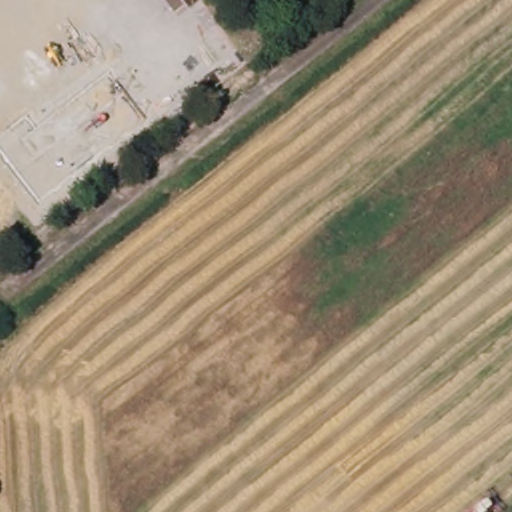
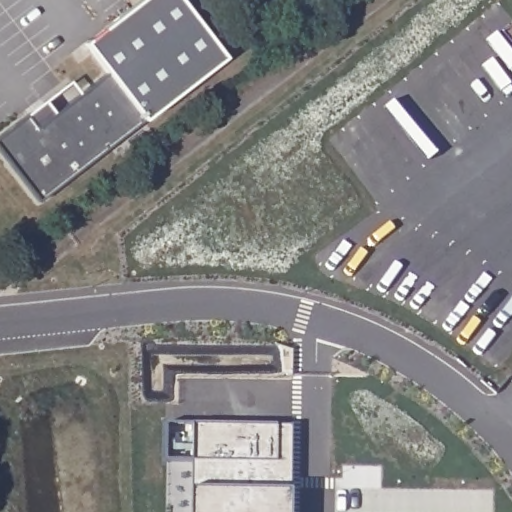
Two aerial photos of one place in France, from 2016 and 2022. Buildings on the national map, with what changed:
new [(108,73),(85,43),(141,0),(181,0),(226,58),(39,203),(0,152),(0,136),(28,114),(46,100),(56,113),(108,73)]
new [(295,424),(295,436),(293,512),(193,512),(194,422),(279,424),(295,424)]

